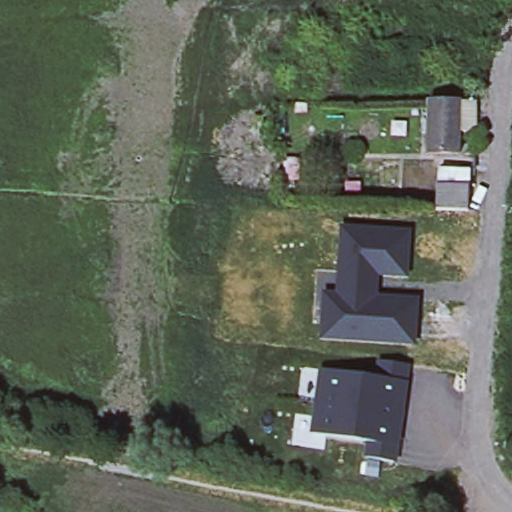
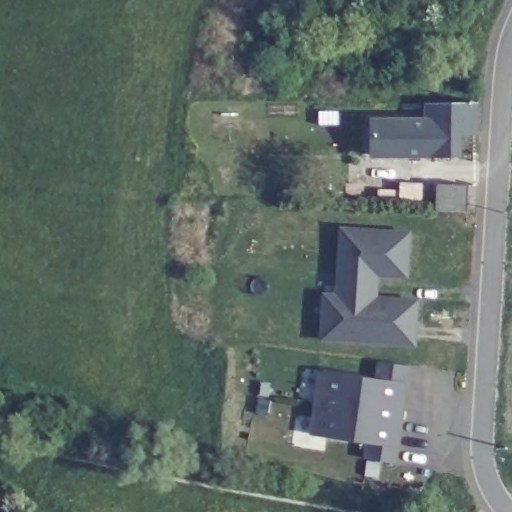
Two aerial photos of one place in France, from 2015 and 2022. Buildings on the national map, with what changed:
new [(429,101),(429,153),(460,154),(462,157),(371,157),(371,117),(425,117),(425,102),(429,101)]
unchanged [(477,101),(477,133),(460,133),(460,154),(429,153),(429,101),(460,101),(477,101)]
unchanged [(470,181),(469,207),(452,206),(435,205),(437,180),(470,181)]
unchanged [(409,232),(407,277),(377,276),(375,301),(419,305),(417,345),(320,339),(324,296),(336,297),(340,227),(409,232)]
unchanged [(375,374),(377,360),(407,364),(397,459),(365,455),(365,440),(310,433),(317,371),(375,374)]

